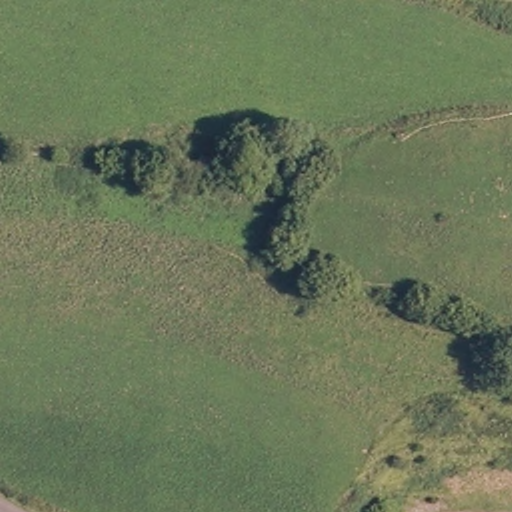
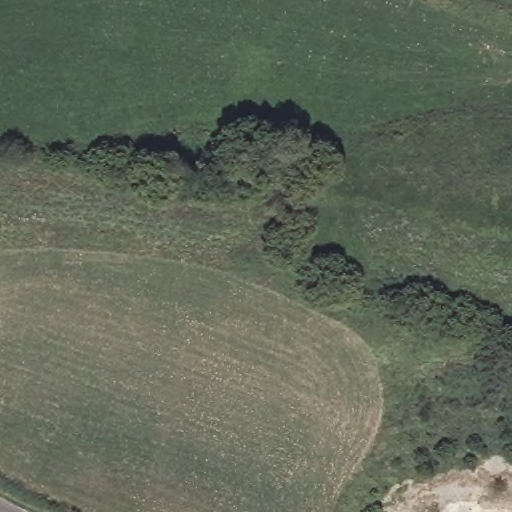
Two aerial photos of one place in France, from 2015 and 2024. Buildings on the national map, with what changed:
unchanged [(197,153),(217,160),(210,176),(190,170),(197,153)]

